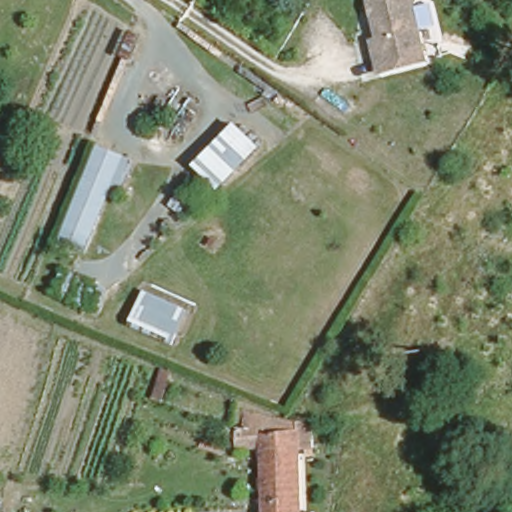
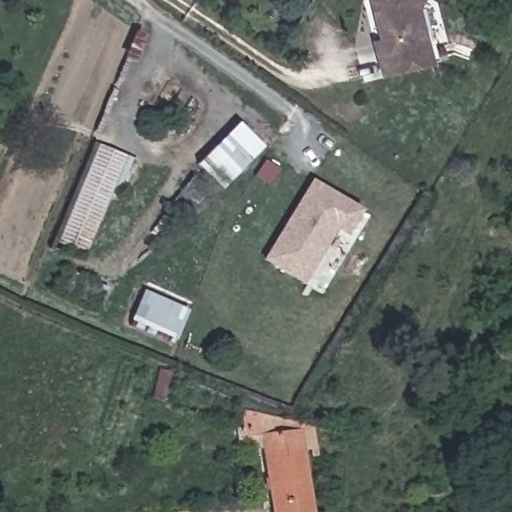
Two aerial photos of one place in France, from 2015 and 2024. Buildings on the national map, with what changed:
unchanged [(434,62),(380,76),(371,39),(377,36),(368,0),(423,0),(418,9),(434,62)]
unchanged [(221,189),(196,164),(237,122),(263,146),(221,189)]
unchanged [(133,152),(117,185),(110,182),(80,250),(53,234),(96,135),(133,152)]
new [(346,238),(335,232),(302,287),(261,262),(311,179),(362,211),(346,238)]
unchanged [(107,282),(92,312),(47,292),(61,262),(107,282)]
unchanged [(191,302),(169,338),(126,318),(140,282),(191,302)]
unchanged [(312,421),(313,443),(303,445),(312,507),(323,507),(324,512),(272,512),(259,430),(312,421)]

